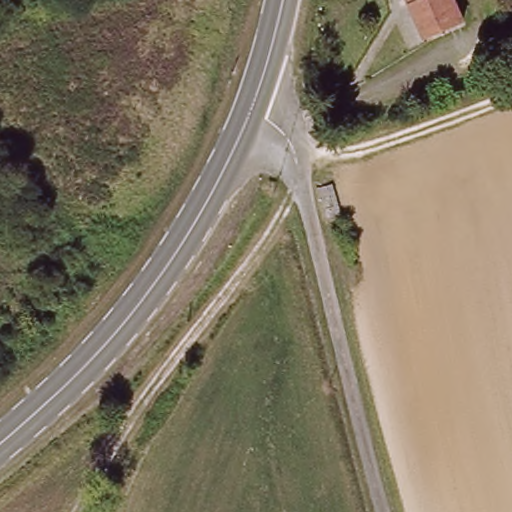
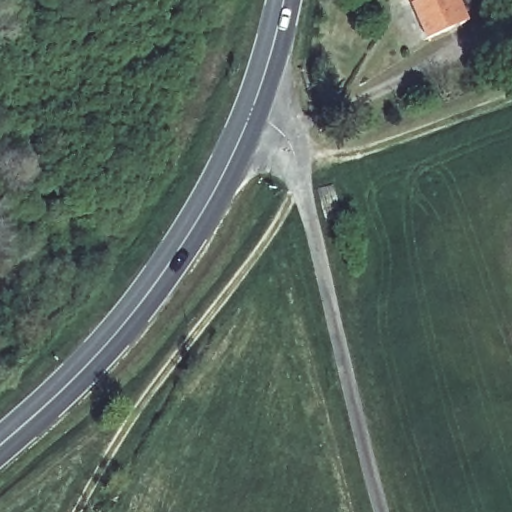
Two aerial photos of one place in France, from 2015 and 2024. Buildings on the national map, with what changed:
unchanged [(457,28),(425,42),(408,7),(406,0),(445,0),(457,28)]

